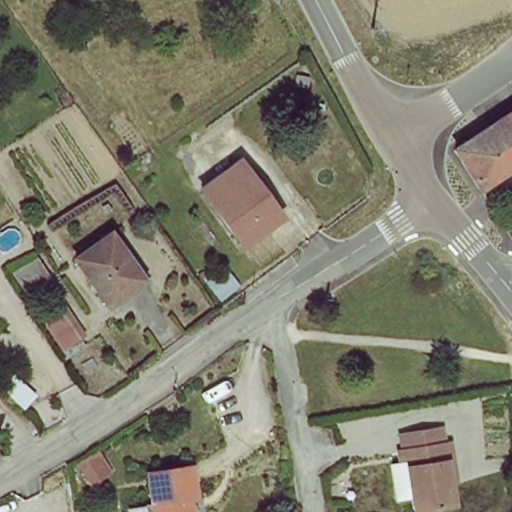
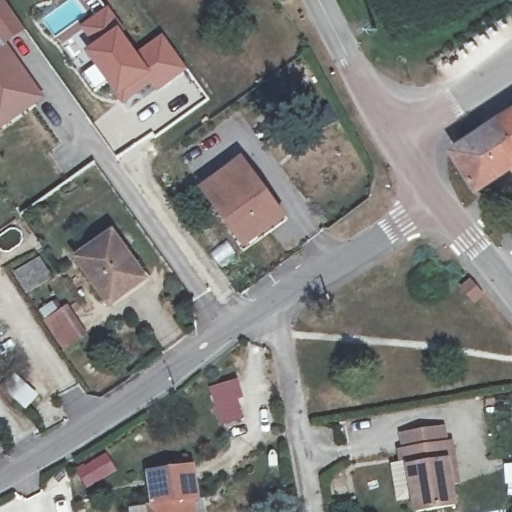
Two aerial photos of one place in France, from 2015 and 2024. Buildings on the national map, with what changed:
new [(0,0),(2,0),(25,32),(5,46),(43,100),(0,130),(0,0)]
new [(108,7),(136,52),(161,34),(188,69),(156,95),(149,87),(122,107),(103,82),(84,53),(93,46),(79,27),(108,7)]
unchanged [(466,154),(512,123),(512,174),(488,190),(466,154)]
unchanged [(206,186),(238,164),(264,204),(271,199),(285,217),(243,245),(206,186)]
unchanged [(77,258),(111,236),(143,282),(106,306),(77,258)]
unchanged [(68,299),(91,331),(65,350),(42,316),(68,299)]
unchanged [(451,462),(447,463),(453,508),(430,512),(413,512),(406,467),(398,467),(396,455),(402,452),(400,438),(434,431),(438,447),(448,446),(451,462)]
unchanged [(153,510),(158,508),(156,473),(192,466),(195,500),(189,502),(190,512),(153,512),(153,510)]

